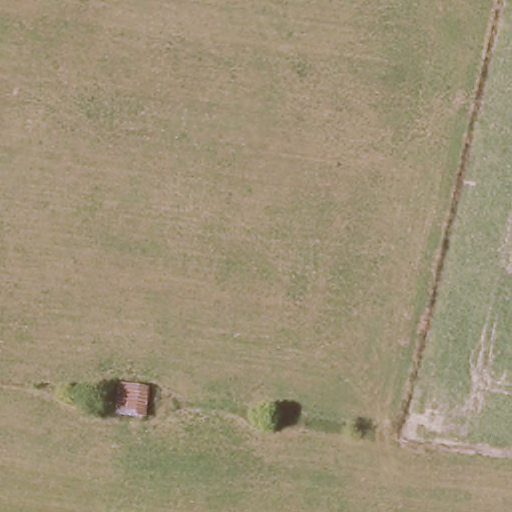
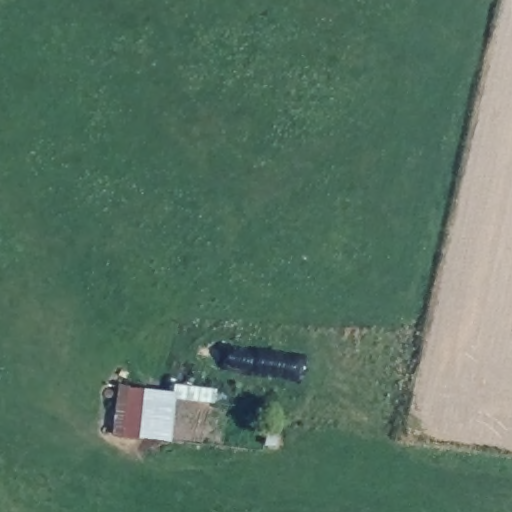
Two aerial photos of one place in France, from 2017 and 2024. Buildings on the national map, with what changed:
demolished [(151,384),(148,415),(118,414),(118,382),(151,384)]
new [(117,387),(175,392),(175,385),(215,389),(213,403),(173,399),(170,442),(112,436),(117,387)]

